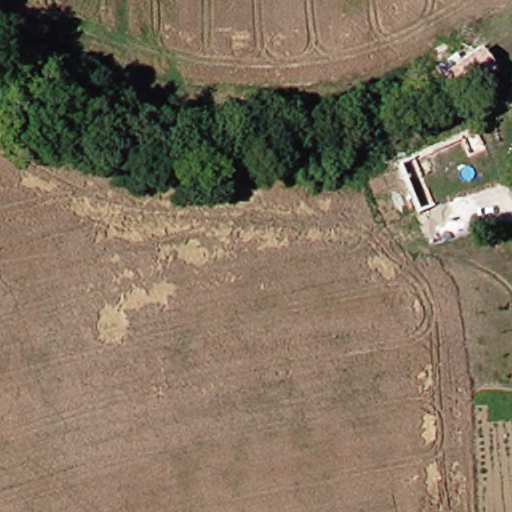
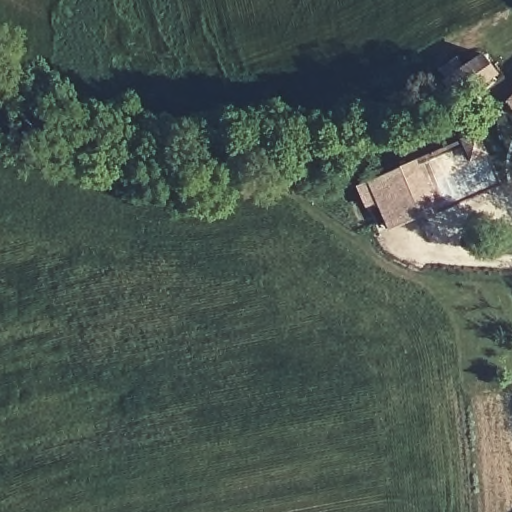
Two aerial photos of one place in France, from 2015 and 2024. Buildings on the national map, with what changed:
unchanged [(485,46),(500,65),(466,93),(450,75),(485,46)]
unchanged [(512,92),(512,106),(506,99),(512,92)]
new [(437,208),(387,230),(366,180),(416,159),(437,208)]

